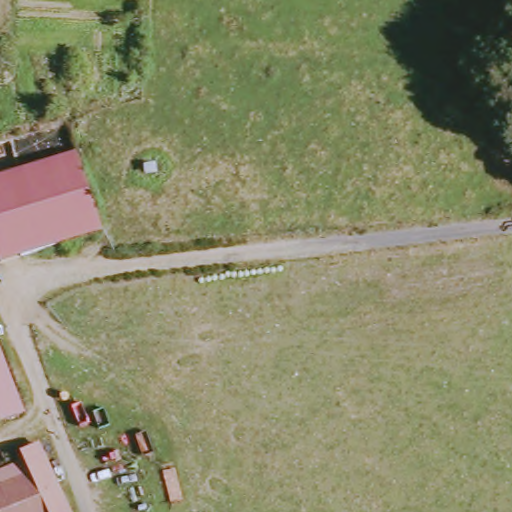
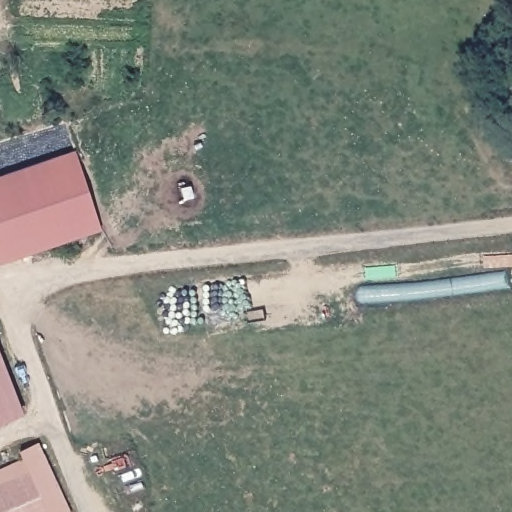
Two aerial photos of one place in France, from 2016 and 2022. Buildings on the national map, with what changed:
unchanged [(9,263),(0,238),(0,178),(79,150),(107,228),(9,263)]
unchanged [(26,414),(0,423),(0,347),(26,414)]
unchanged [(1,490),(0,489),(0,473),(28,462),(26,454),(40,449),(66,512),(45,512),(31,478),(1,490)]
unchanged [(1,490),(31,478),(45,512),(0,512),(0,491),(1,490)]

